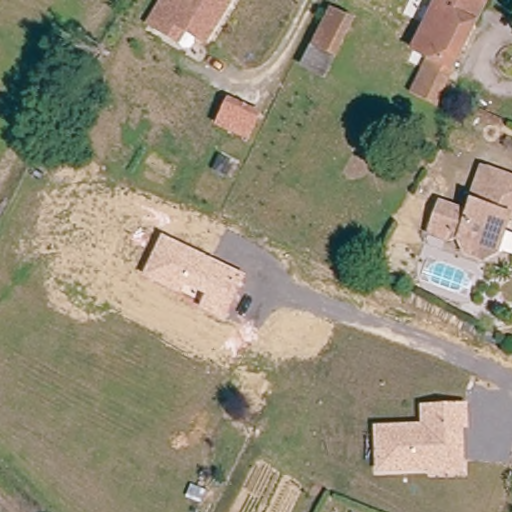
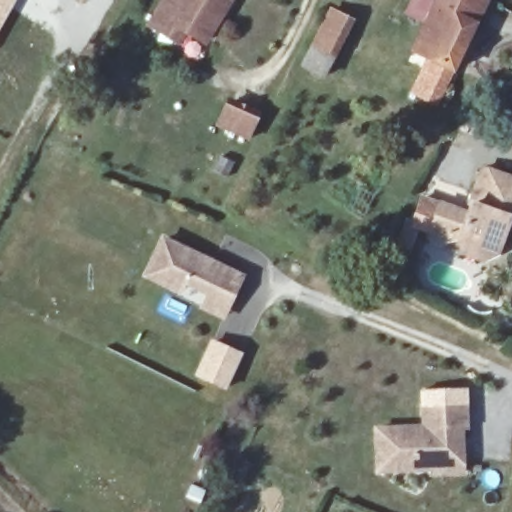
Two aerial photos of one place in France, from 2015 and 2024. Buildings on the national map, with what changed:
new [(12,0),(0,21),(0,0),(12,0)]
unchanged [(162,34),(147,25),(162,0),(177,0),(180,1),(181,0),(228,0),(203,42),(184,31),(177,42),(162,34)]
unchanged [(447,95),(441,108),(424,97),(439,68),(413,54),(441,0),(480,0),(489,8),(447,95)]
unchanged [(323,74),(303,64),(329,9),(350,19),(323,74)]
unchanged [(227,96),(262,112),(250,141),(214,127),(227,96)]
unchanged [(463,235),(465,230),(452,225),(450,231),(433,224),(442,196),(470,207),(486,166),(512,175),(512,214),(499,247),(463,235)]
unchanged [(142,276),(161,234),(247,272),(223,320),(198,307),(204,293),(187,286),(183,295),(142,276)]
new [(226,390),(195,375),(212,338),(243,352),(226,390)]
unchanged [(373,426),(419,423),(418,403),(468,401),(470,429),(464,430),(466,471),(375,476),(373,426)]

